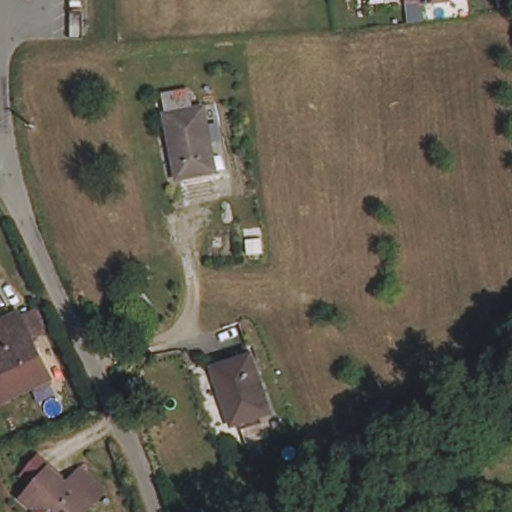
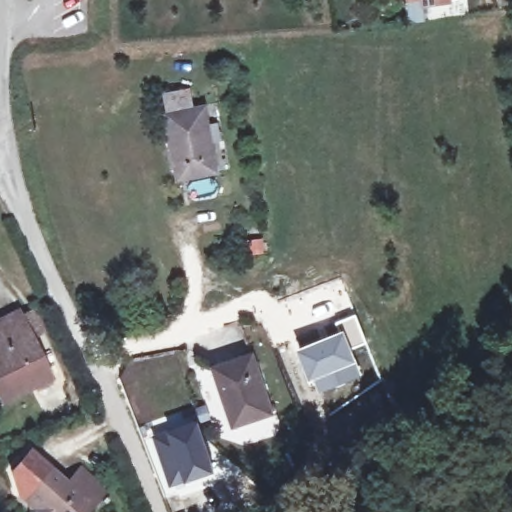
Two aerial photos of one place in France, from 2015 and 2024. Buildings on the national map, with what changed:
unchanged [(407,5),(407,0),(456,0),(422,4),(407,5)]
unchanged [(189,98),(190,107),(155,112),(154,105),(153,96),(188,90),(189,98)]
unchanged [(203,172),(173,179),(170,167),(165,169),(157,118),(192,111),(203,172)]
new [(342,327),(337,320),(355,312),(367,342),(352,348),(362,376),(319,393),(312,378),(309,380),(295,347),(342,327)]
unchanged [(0,331),(20,321),(33,315),(42,335),(30,341),(48,382),(0,405),(0,331)]
unchanged [(264,413),(225,424),(209,371),(247,361),(264,413)]
new [(197,416),(194,407),(205,402),(210,418),(200,422),(215,471),(169,487),(150,431),(197,416)]
unchanged [(91,512),(29,512),(25,509),(35,496),(24,486),(38,468),(50,478),(49,480),(67,493),(80,478),(102,497),(91,512)]

